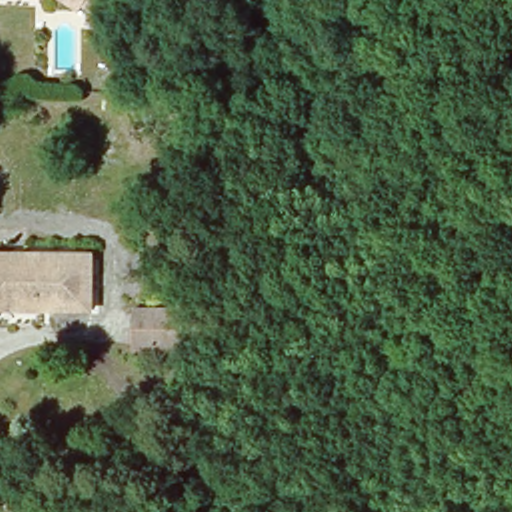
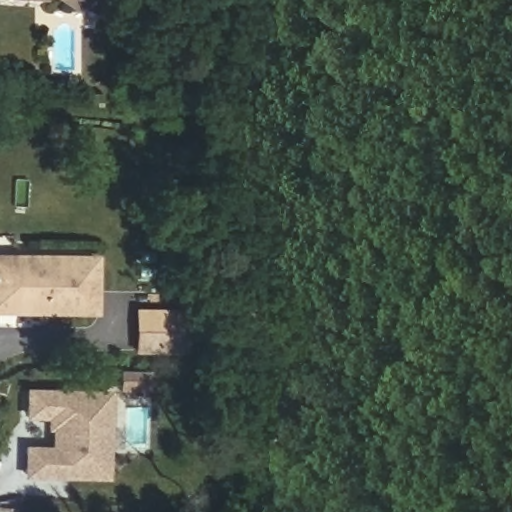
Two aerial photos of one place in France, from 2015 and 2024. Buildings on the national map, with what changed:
unchanged [(17,239),(71,247),(97,251),(95,263),(72,262),(10,259),(0,257),(0,246),(14,247),(17,239)]
unchanged [(10,259),(72,262),(95,263),(87,314),(73,313),(39,307),(35,324),(0,318),(0,257),(10,259)]
unchanged [(134,302),(191,305),(190,349),(136,347),(134,302)]
new [(119,389),(120,369),(150,370),(150,390),(119,389)]
new [(25,387),(111,388),(110,479),(22,477),(24,444),(50,444),(50,429),(45,426),(45,418),(24,418),(25,387)]

